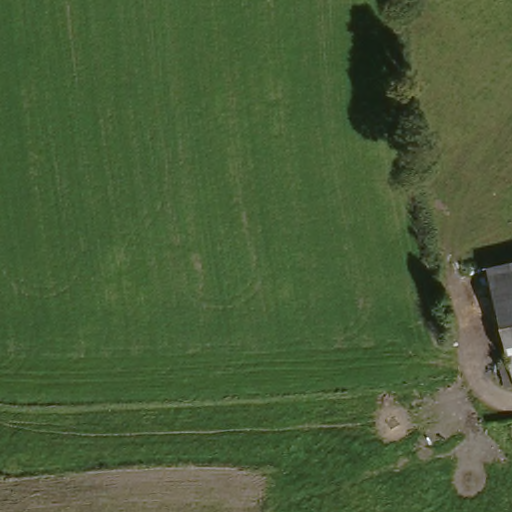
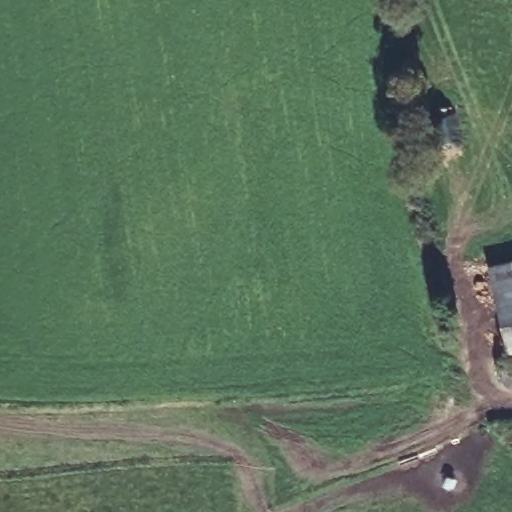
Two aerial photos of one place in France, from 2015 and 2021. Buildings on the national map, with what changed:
unchanged [(489,247),(512,242),(512,342),(508,343),(503,323),(489,247)]
unchanged [(508,343),(512,342),(512,376),(506,378),(499,345),(508,343)]

